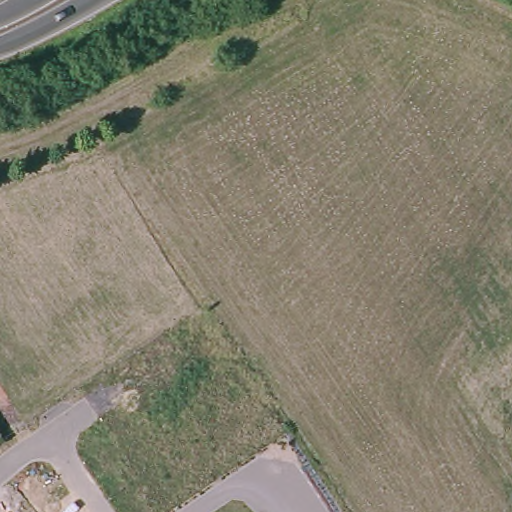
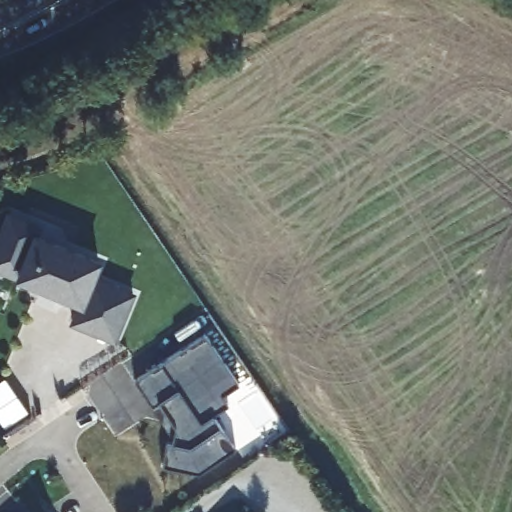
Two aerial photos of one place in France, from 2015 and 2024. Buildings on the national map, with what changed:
new [(47,223),(44,230),(110,258),(105,273),(144,289),(125,337),(87,321),(96,299),(7,264),(23,215),(47,223)]
new [(145,378),(215,328),(249,380),(232,392),(239,401),(223,411),(245,445),(209,471),(172,464),(177,439),(182,440),(182,436),(162,405),(145,378)]

